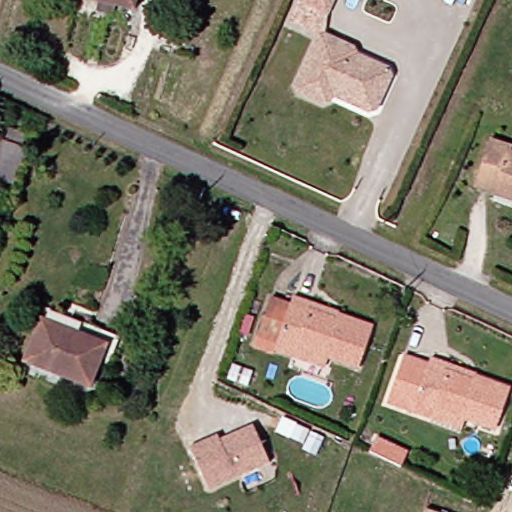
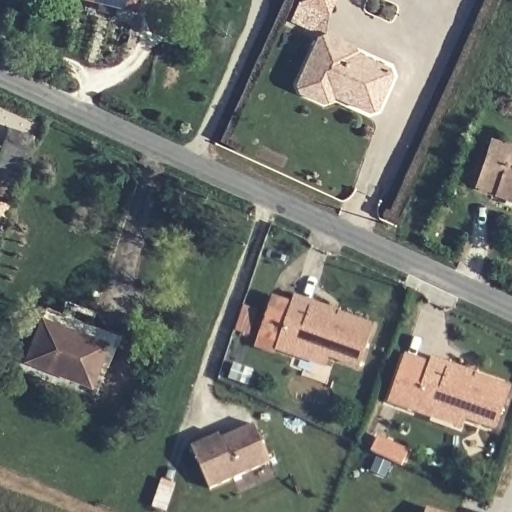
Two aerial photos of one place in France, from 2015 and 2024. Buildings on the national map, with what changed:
unchanged [(82,0),(83,0),(139,0),(136,13),(82,0)]
unchanged [(326,33),(355,44),(360,54),(390,65),(393,76),(379,109),(368,113),(335,98),(333,101),(325,104),(298,94),(295,85),(317,34),(312,31),(290,21),(302,0),(308,0),(329,9),(326,33)]
unchanged [(308,0),(333,0),(329,9),(308,0)]
unchanged [(0,179),(0,165),(6,145),(12,130),(34,139),(29,154),(19,185),(0,179)]
unchanged [(512,151),(512,197),(497,192),(498,189),(480,183),(494,139),(512,145),(512,151)]
unchanged [(296,357),(280,351),(282,343),(262,335),(275,299),(294,307),(296,299),(315,305),(346,317),(375,328),(361,367),(332,356),(328,369),(296,357)]
unchanged [(31,362),(47,320),(110,345),(94,385),(31,362)]
unchanged [(427,416),(395,403),(411,359),(431,367),(433,362),(446,367),(482,379),(509,389),(494,429),(466,419),(463,430),(427,416)]
unchanged [(209,488),(191,444),(210,437),(220,433),(222,438),(255,424),(270,462),(209,488)]
unchanged [(412,454),(406,467),(375,453),(381,439),(412,454)]
unchanged [(426,511),(429,512),(426,512),(426,511)]

